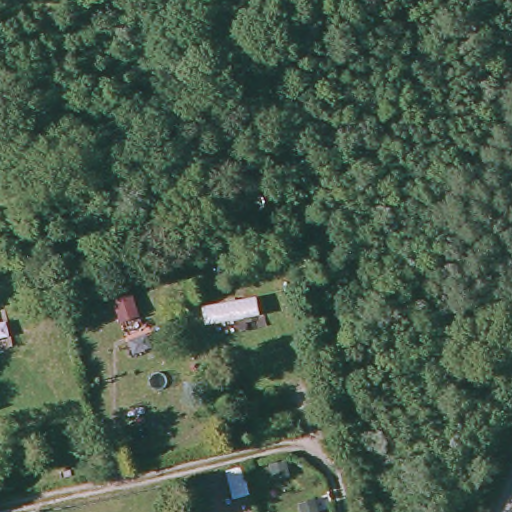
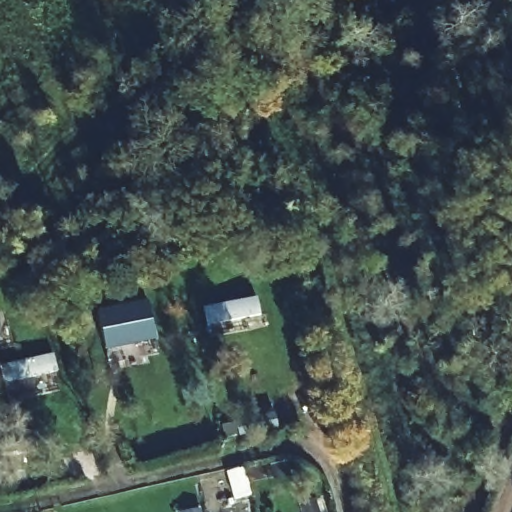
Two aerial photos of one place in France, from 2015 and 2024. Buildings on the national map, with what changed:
new [(149,304),(153,343),(107,349),(99,312),(149,304)]

